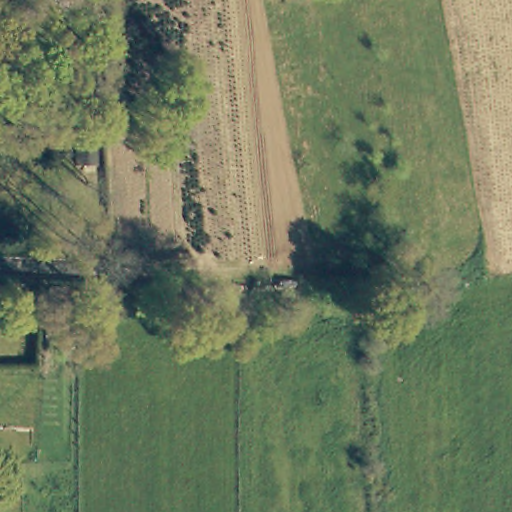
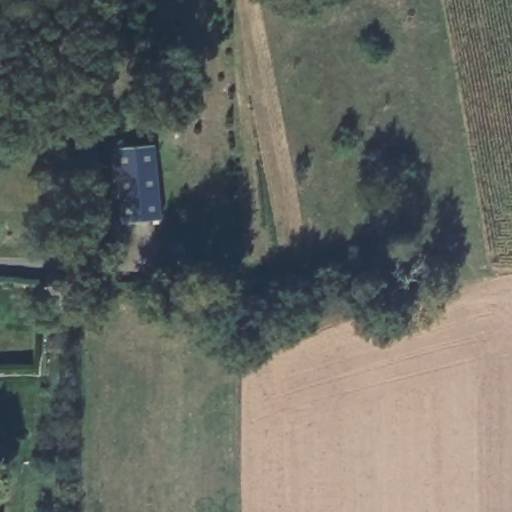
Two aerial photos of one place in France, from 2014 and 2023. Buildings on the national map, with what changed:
new [(156,144),(163,220),(121,223),(114,148),(156,144)]
unchanged [(90,166),(71,166),(71,147),(90,147),(90,166)]
unchanged [(45,316),(45,291),(63,292),(61,316),(45,316)]

